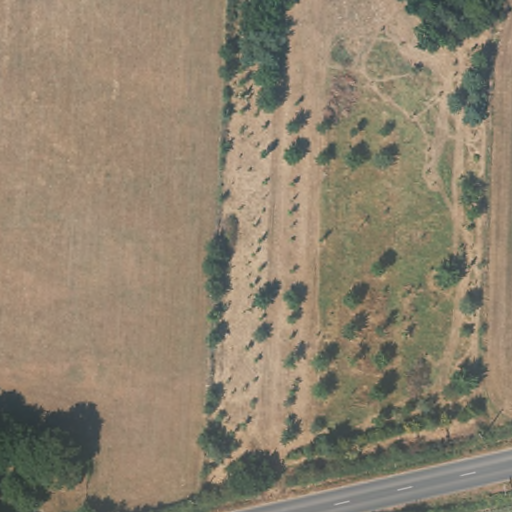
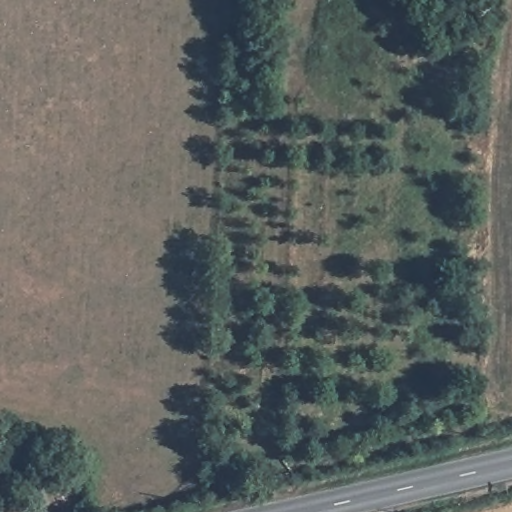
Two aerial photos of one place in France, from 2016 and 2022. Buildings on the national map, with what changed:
[]

